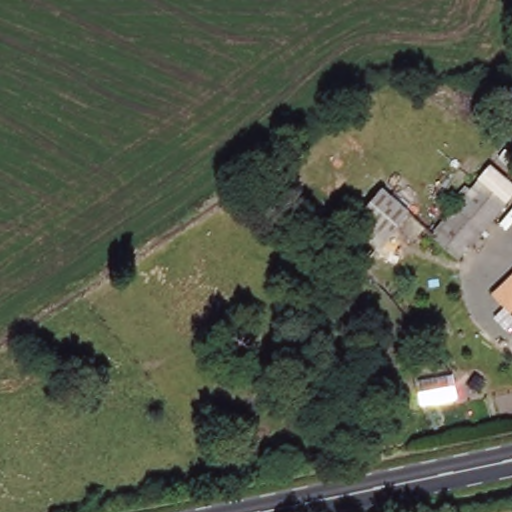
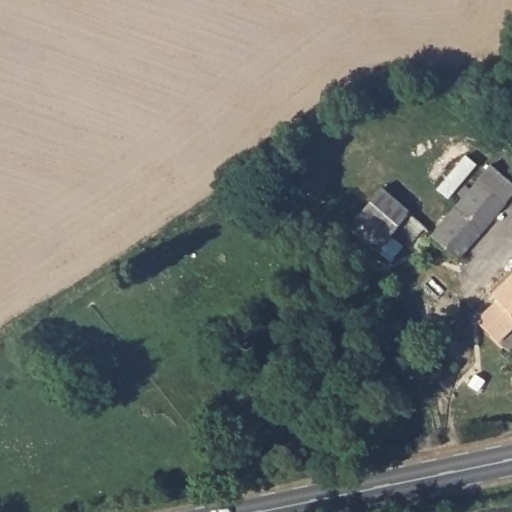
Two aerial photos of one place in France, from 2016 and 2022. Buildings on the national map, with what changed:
unchanged [(490,169),(512,189),(512,196),(457,258),(432,235),(490,169)]
unchanged [(429,226),(414,243),(398,229),(381,249),(352,223),(397,172),(425,196),(413,211),(429,226)]
unchanged [(505,302),(499,297),(512,282),(512,308),(505,302)]

